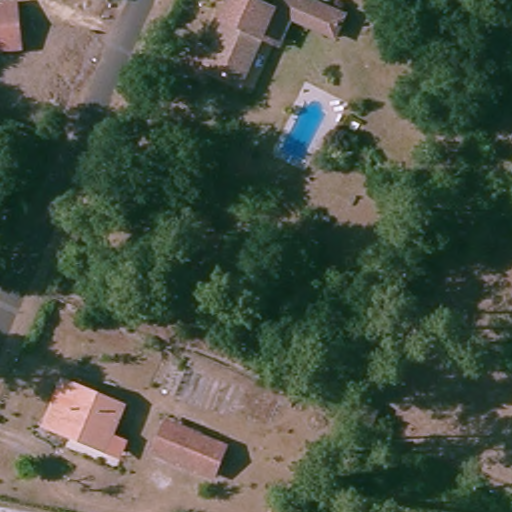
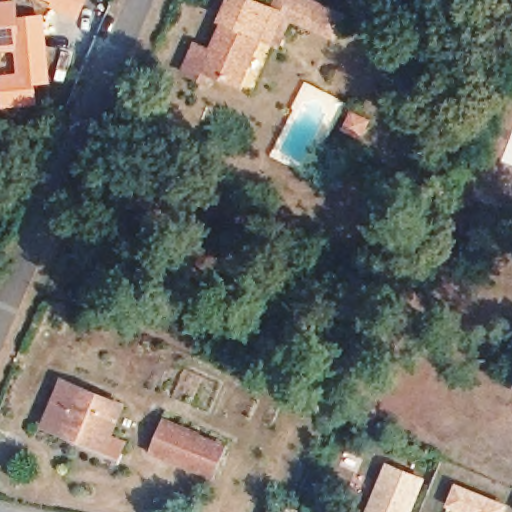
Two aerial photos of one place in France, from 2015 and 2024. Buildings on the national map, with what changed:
new [(12,0),(17,0),(19,18),(44,14),(51,84),(36,85),(37,106),(2,109),(0,92),(0,75),(17,73),(16,53),(14,53),(10,5),(0,6),(0,2),(1,1),(12,0)]
new [(42,0),(87,0),(77,20),(42,0)]
unchanged [(243,86),(205,73),(222,21),(220,21),(228,0),(265,0),(302,0),(336,12),(325,39),(286,25),(280,23),(273,43),(261,39),(243,86)]
unchanged [(0,54),(0,6),(10,5),(14,53),(0,54)]
unchanged [(478,58),(485,39),(508,49),(502,67),(478,58)]
unchanged [(43,428),(62,384),(119,408),(101,454),(43,428)]
unchanged [(214,474),(173,457),(157,451),(168,424),(173,410),(188,417),(205,424),(200,436),(226,448),(214,474)]
new [(387,461),(426,478),(412,512),(365,512),(387,461)]
new [(447,505),(455,482),(507,504),(504,512),(463,512),(447,505)]

